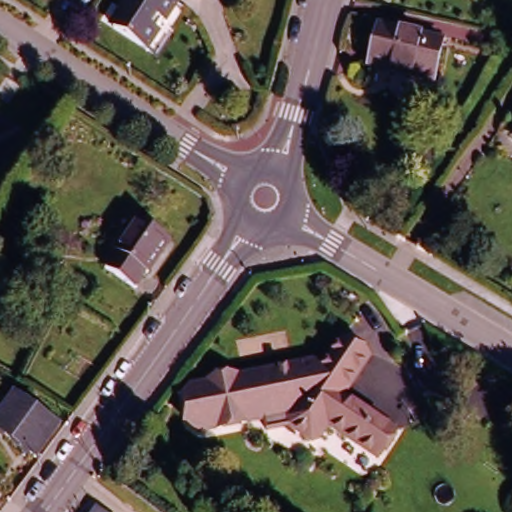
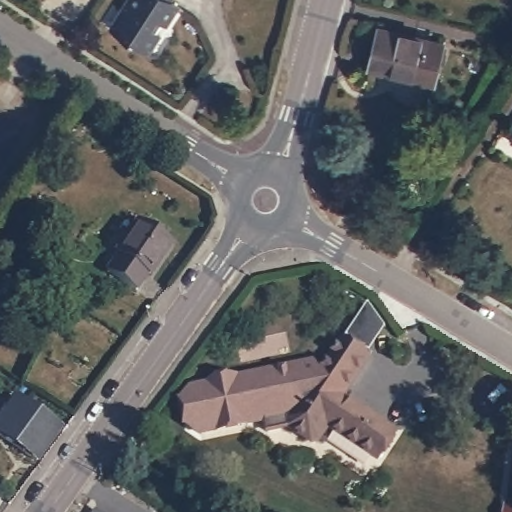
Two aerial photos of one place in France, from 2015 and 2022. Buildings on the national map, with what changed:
unchanged [(113,38),(125,21),(121,18),(132,0),(174,0),(168,9),(176,14),(165,33),(159,41),(147,60),(113,38)]
unchanged [(442,52),(434,90),(370,76),(379,38),(442,52)]
unchanged [(119,261),(117,259),(139,227),(171,248),(149,280),(147,279),(136,295),(107,277),(119,261)]
unchanged [(288,425),(268,431),(266,423),(202,436),(186,428),(179,401),(191,383),(336,349),(288,425)]
unchanged [(366,368),(344,403),(392,434),(375,459),(327,430),(317,445),(312,446),(287,432),(288,424),(336,349),(366,368)]
unchanged [(61,434),(37,466),(0,439),(0,424),(16,402),(61,434)]
unchanged [(102,511),(103,512),(101,512),(102,511)]

